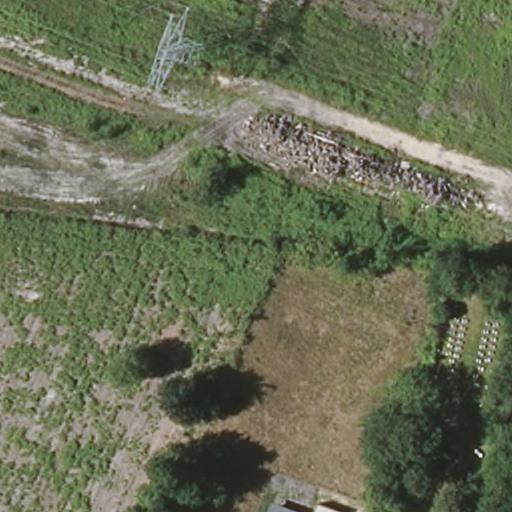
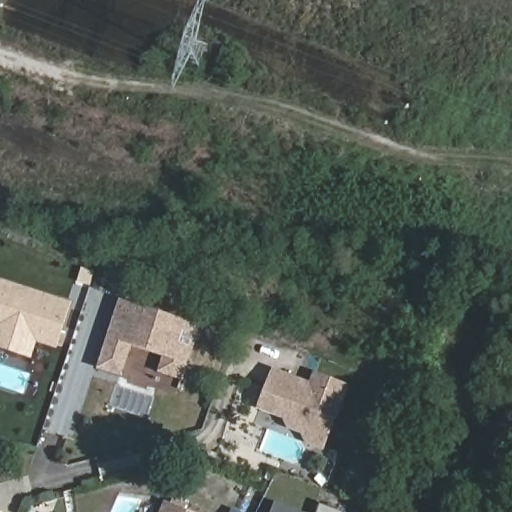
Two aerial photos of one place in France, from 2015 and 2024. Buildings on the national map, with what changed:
new [(56,349),(0,331),(0,279),(71,302),(56,349)]
new [(182,380),(156,372),(161,357),(131,347),(122,378),(96,369),(119,299),(201,325),(182,380)]
new [(323,451),(307,445),(301,434),(287,429),(283,420),(257,411),(272,367),(309,382),(313,372),(349,385),(323,451)]
new [(378,389),(400,398),(391,421),(369,413),(378,389)]
new [(190,512),(159,512),(164,501),(190,512)]
unchanged [(272,512),(276,502),(303,512),(272,512)]
unchanged [(346,511),(345,512),(317,512),(320,503),(346,511)]

